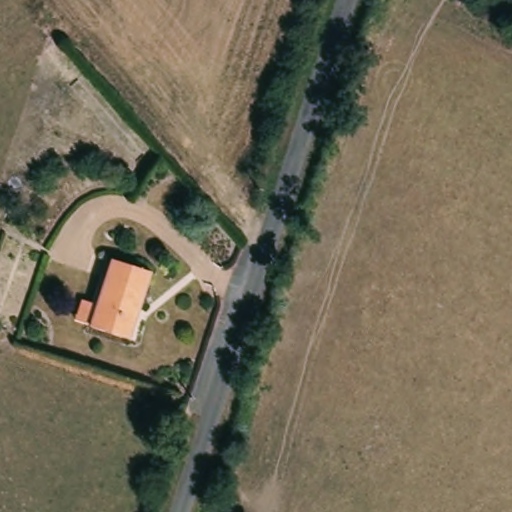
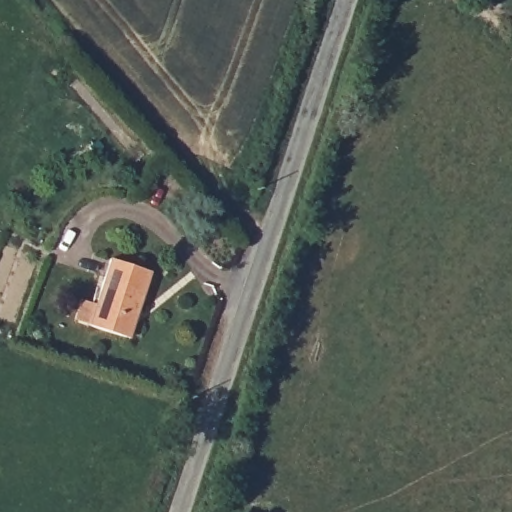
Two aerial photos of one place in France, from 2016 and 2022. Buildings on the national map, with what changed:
unchanged [(113,258),(154,271),(130,337),(91,323),(113,258)]

